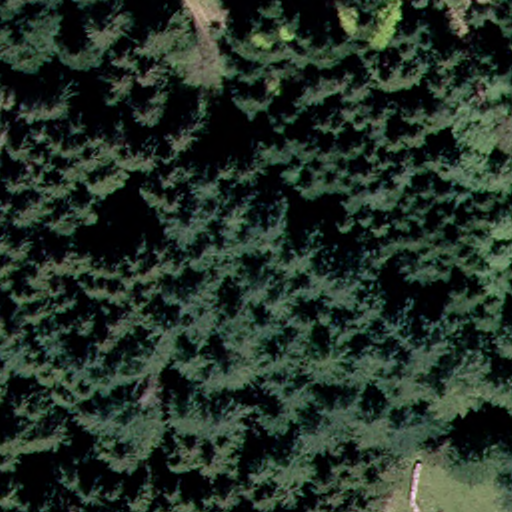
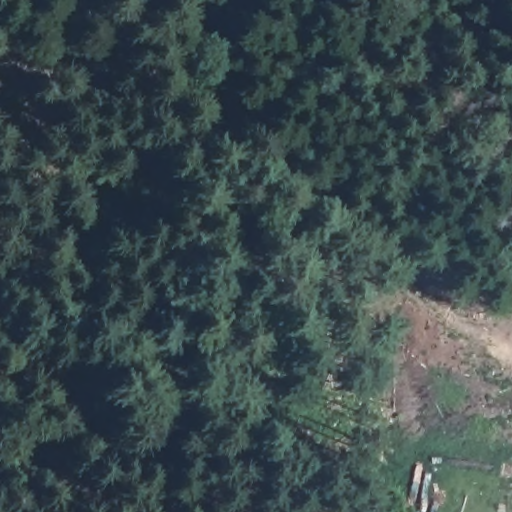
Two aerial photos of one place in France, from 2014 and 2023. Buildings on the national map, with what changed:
[]

